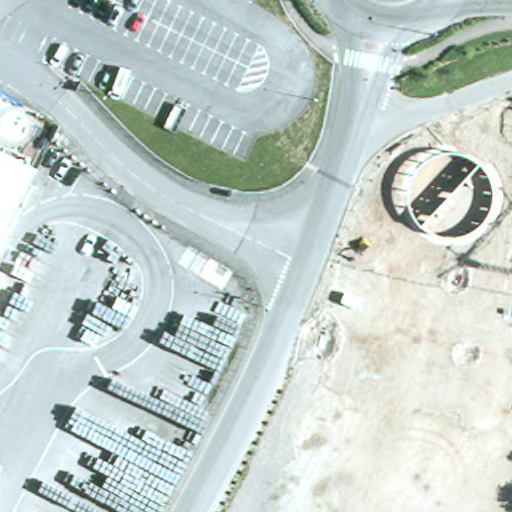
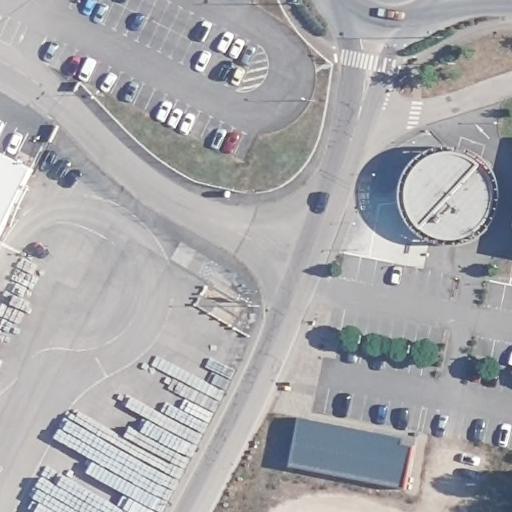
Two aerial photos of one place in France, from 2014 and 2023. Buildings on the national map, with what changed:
unchanged [(489,171),(495,182),(497,190),(496,201),(493,210),(489,219),(484,225),(476,230),(466,235),(457,236),(449,236),(439,235),(431,232),(423,227),(417,220),(412,212),(409,200),(409,191),(411,181),(416,171),(423,161),(434,155),(444,151),(456,151),(466,154),(474,156),(482,162),(489,171)]
unchanged [(32,172),(14,208),(0,237),(0,157),(32,172)]
new [(379,428),(418,436),(416,444),(407,487),(292,464),(301,416),(378,431),(379,428)]

